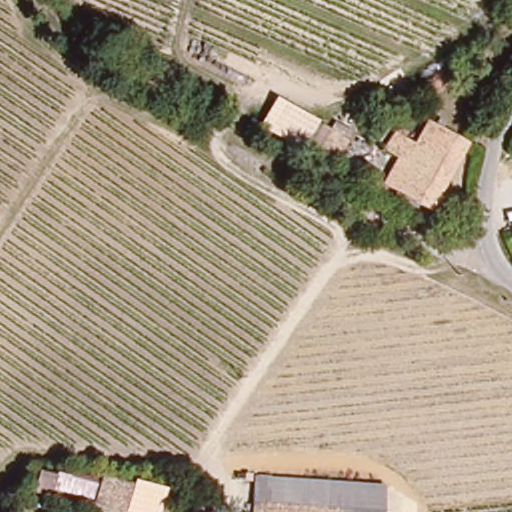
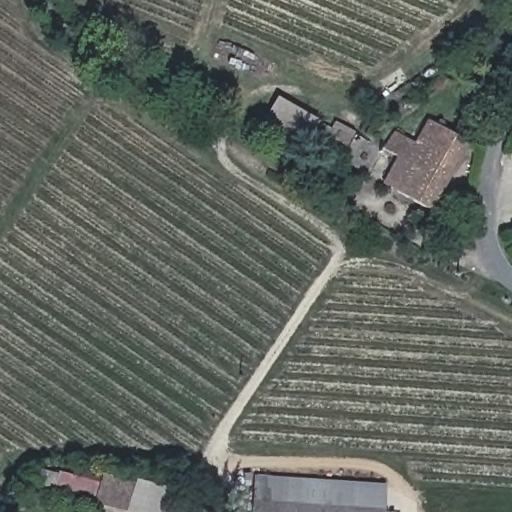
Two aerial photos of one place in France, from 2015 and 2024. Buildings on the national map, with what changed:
unchanged [(403,107),(408,109),(466,139),(426,207),(366,176),(400,117),(403,107)]
unchanged [(125,505),(58,487),(64,463),(131,480),(125,505)]
unchanged [(257,487),(385,492),(384,512),(256,512),(257,487)]

